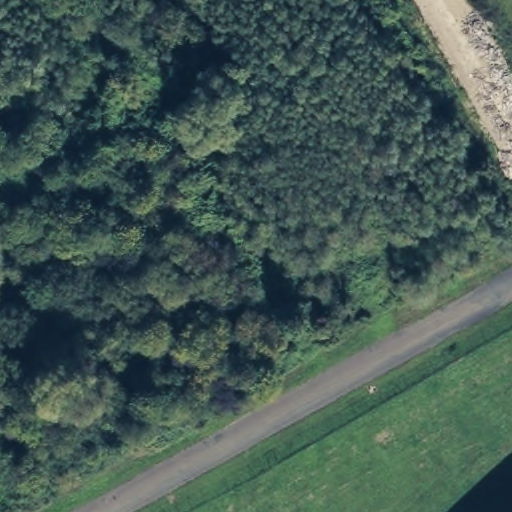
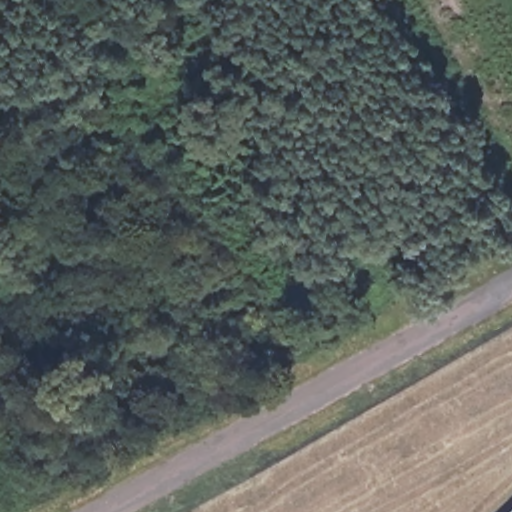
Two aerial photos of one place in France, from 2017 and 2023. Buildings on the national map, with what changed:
[]

